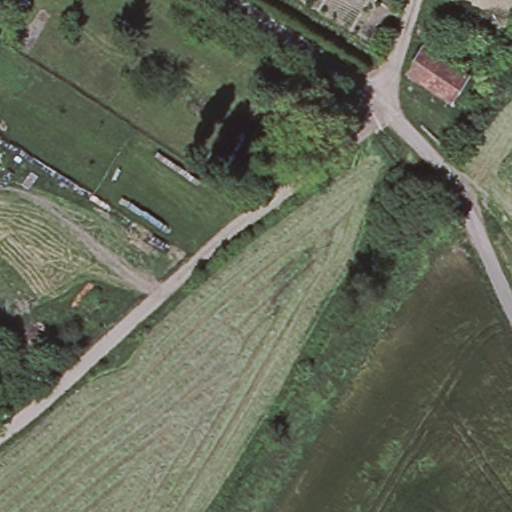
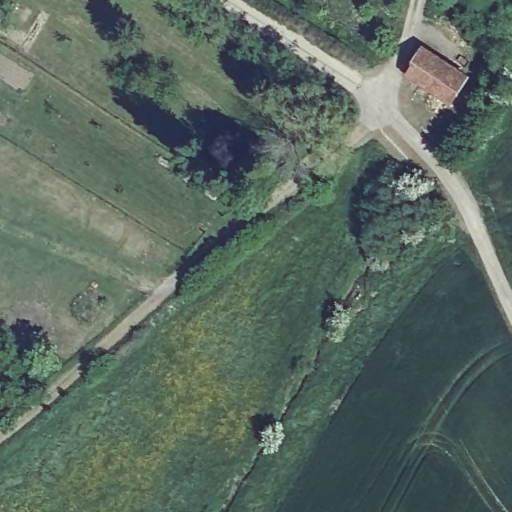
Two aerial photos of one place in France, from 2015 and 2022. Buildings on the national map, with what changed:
unchanged [(410,70),(424,45),(467,73),(466,78),(453,98),(410,70)]

